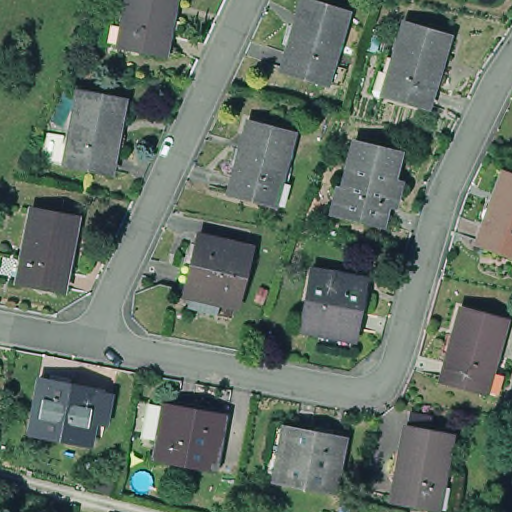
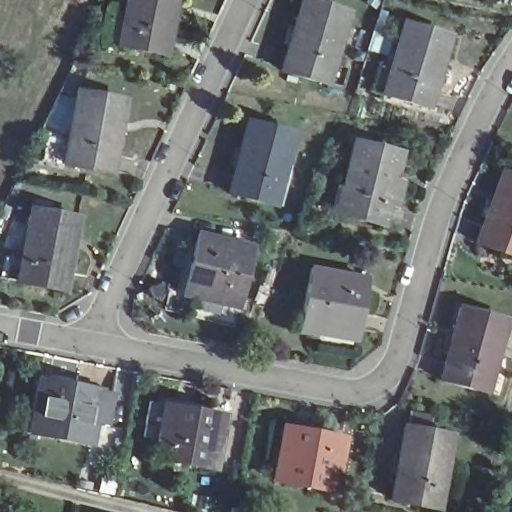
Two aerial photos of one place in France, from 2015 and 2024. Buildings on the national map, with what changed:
unchanged [(164,55),(118,46),(127,0),(174,0),(164,55)]
unchanged [(317,80),(271,67),(291,0),(310,0),(338,8),(317,80)]
unchanged [(427,104),(381,90),(403,18),(449,33),(427,104)]
unchanged [(123,101),(109,173),(63,165),(73,116),(78,93),(83,94),(123,101)]
unchanged [(279,206),(233,194),(253,122),(298,134),(279,206)]
unchanged [(376,220),(331,209),(349,137),(395,150),(376,220)]
unchanged [(472,238),(498,169),(512,173),(512,253),(472,238)]
unchanged [(67,286),(21,277),(35,204),(82,212),(67,286)]
unchanged [(184,310),(188,296),(183,295),(196,236),(251,249),(236,307),(219,303),(216,317),(184,310)]
unchanged [(354,346),(301,335),(312,276),(365,286),(354,346)]
unchanged [(487,387),(441,376),(459,305),(506,317),(487,387)]
unchanged [(23,425),(33,372),(94,383),(107,385),(101,418),(88,416),(85,436),(23,425)]
unchanged [(209,472),(148,460),(158,407),(219,418),(209,472)]
unchanged [(334,485),(272,472),(281,420),(343,431),(334,485)]
unchanged [(437,505),(391,497),(404,423),(451,432),(437,505)]

